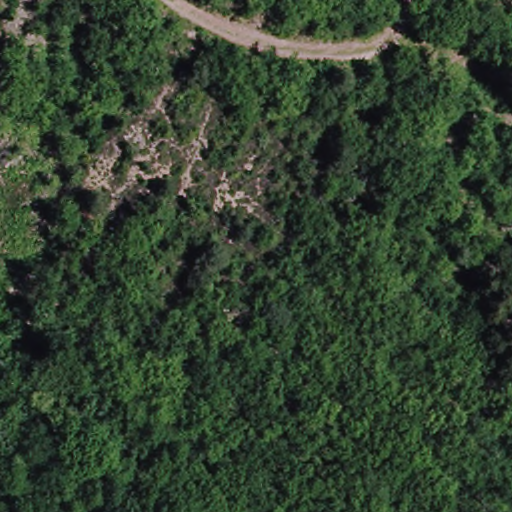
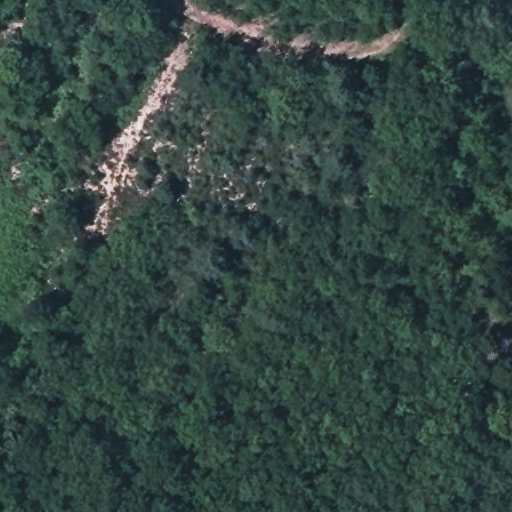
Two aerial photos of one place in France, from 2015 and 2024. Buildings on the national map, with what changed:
[]

